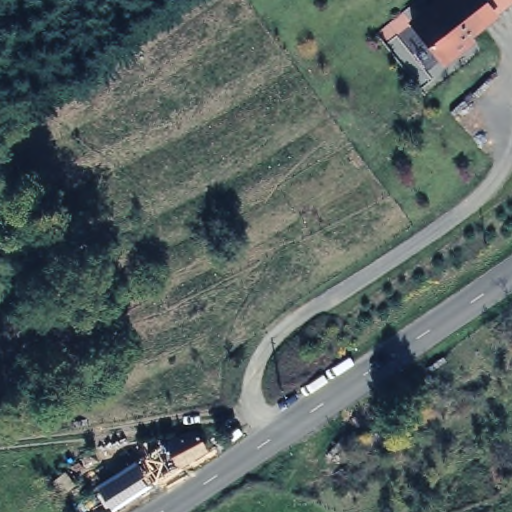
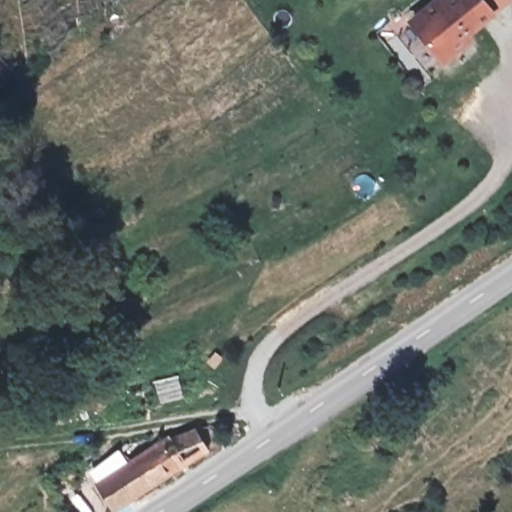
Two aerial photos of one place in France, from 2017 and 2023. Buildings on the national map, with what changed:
unchanged [(462,36),(466,41),(440,62),(411,27),(441,0),(479,0),(490,12),(462,36)]
unchanged [(94,476),(187,423),(198,440),(107,497),(94,476)]

